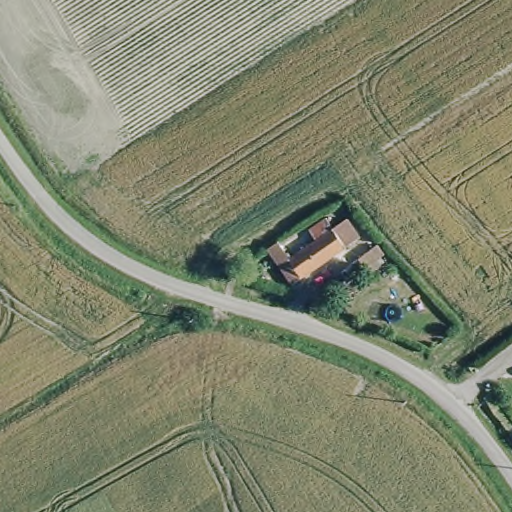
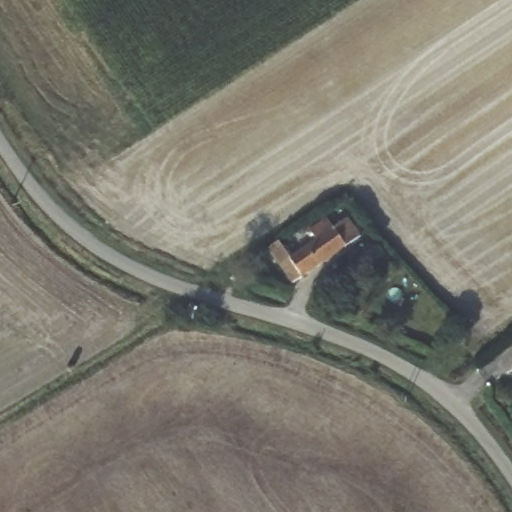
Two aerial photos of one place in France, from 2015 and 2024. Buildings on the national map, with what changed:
unchanged [(284,261),(313,244),(306,234),(320,225),(326,235),(341,226),(353,244),(284,286),(261,252),(272,245),(284,261)]
unchanged [(391,244),(371,259),(364,249),(384,234),(391,244)]

